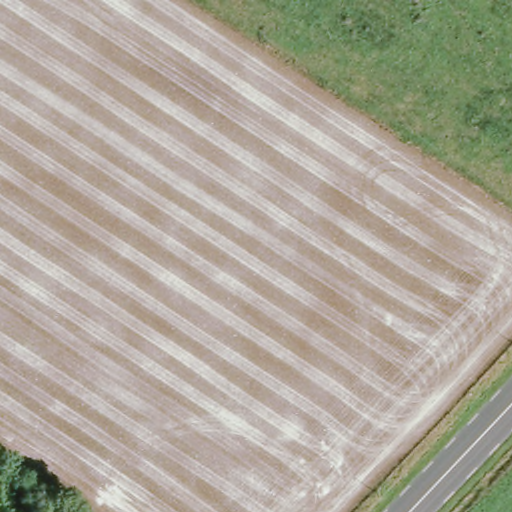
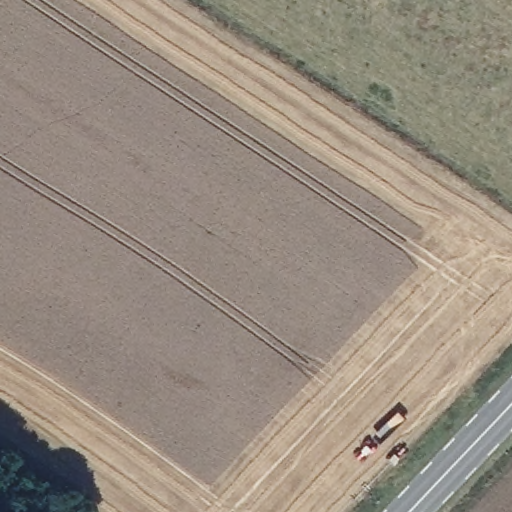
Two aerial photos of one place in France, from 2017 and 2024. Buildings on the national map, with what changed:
[]

